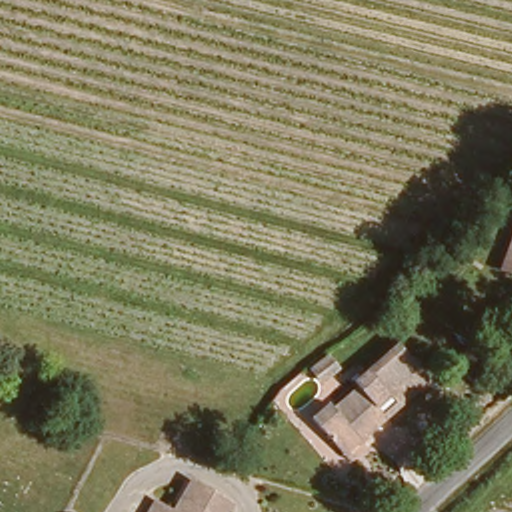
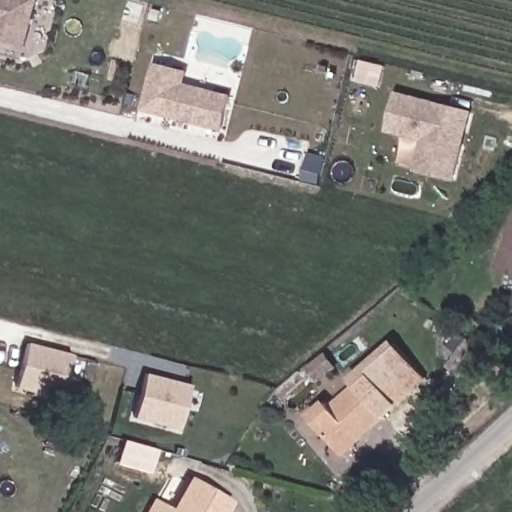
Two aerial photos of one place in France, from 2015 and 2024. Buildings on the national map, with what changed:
new [(27,49),(0,43),(0,0),(38,0),(27,49)]
new [(223,131),(141,109),(153,61),(190,70),(186,84),(233,98),(223,131)]
new [(356,61),(386,67),(381,89),(351,82),(356,61)]
new [(453,182),(413,172),(420,142),(385,133),(396,91),(472,111),(453,182)]
unchanged [(512,249),(512,279),(497,266),(512,249)]
unchanged [(301,428),(317,415),(334,400),(338,406),(348,398),(363,384),(358,379),(374,366),(402,341),(433,376),(404,401),(347,450),(332,464),(301,428)]
new [(72,356),(63,401),(17,392),(26,347),(72,356)]
unchanged [(330,355),(340,366),(325,379),(315,368),(330,355)]
new [(191,379),(183,424),(137,415),(145,370),(191,379)]
unchanged [(219,490),(213,512),(171,512),(180,479),(219,490)]
unchanged [(171,512),(139,512),(141,504),(171,512)]

